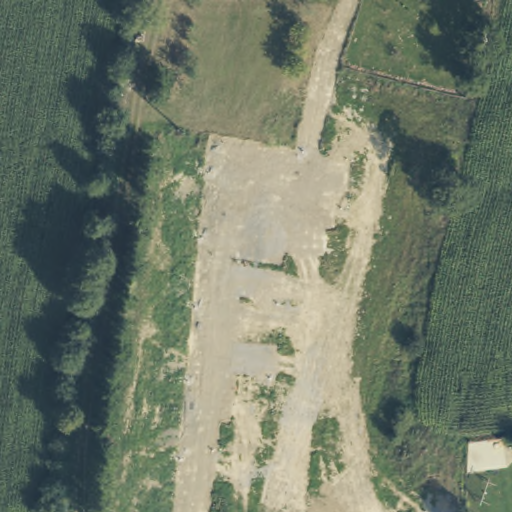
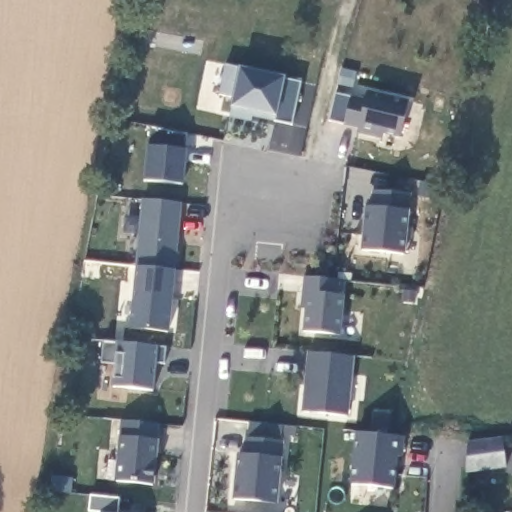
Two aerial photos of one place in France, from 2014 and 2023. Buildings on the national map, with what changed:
new [(233,97),(220,94),(228,64),(302,81),(292,124),(252,116),(251,120),(229,115),(233,97)]
unchanged [(401,138),(384,135),(383,139),(357,133),(359,128),(345,125),(353,95),(365,99),(368,90),(411,101),(401,138)]
new [(147,141),(151,128),(188,134),(187,148),(184,184),(143,180),(147,141)]
new [(366,205),(372,205),(373,190),(412,194),(407,254),(362,249),(366,205)]
new [(136,266),(141,196),(181,200),(174,269),(178,268),(172,331),(130,327),(136,266)]
new [(303,332),(305,309),(301,308),(305,276),(339,280),(338,293),(346,295),(341,335),(303,332)]
new [(167,347),(165,363),(157,363),(154,390),(113,386),(115,363),(101,362),(104,341),(167,347)]
new [(349,416),(303,412),(309,352),(355,356),(349,416)]
new [(119,418),(157,421),(156,440),(159,440),(156,485),(116,482),(119,418)]
new [(406,436),(404,457),(399,458),(396,488),(350,485),(356,431),(406,436)]
new [(238,452),(244,452),(246,437),(285,441),(278,503),(233,499),(238,452)]
new [(504,437),(508,468),(466,473),(467,440),(504,437)]
new [(120,496),(118,512),(87,512),(89,495),(120,496)]

